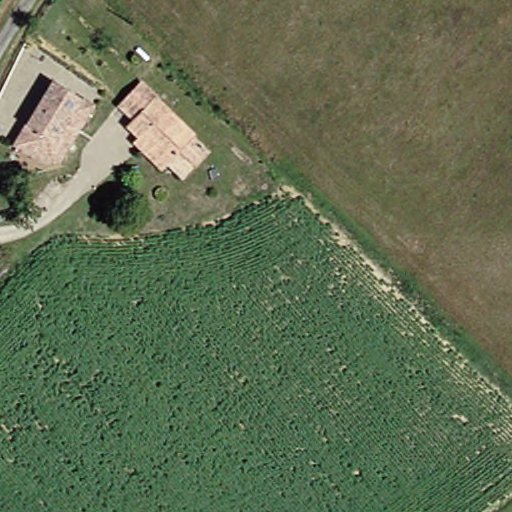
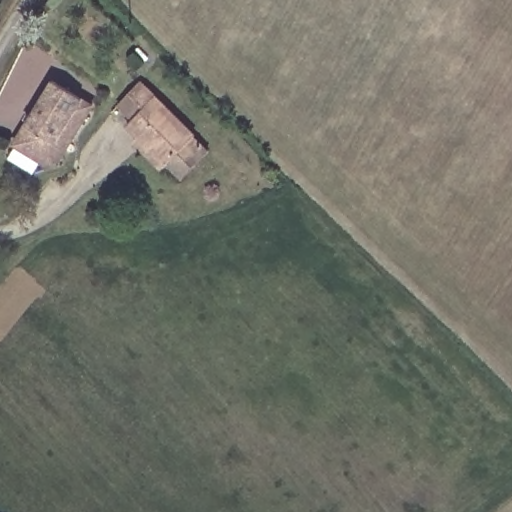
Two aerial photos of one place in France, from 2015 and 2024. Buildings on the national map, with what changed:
unchanged [(50,81),(90,106),(57,159),(40,164),(12,146),(50,81)]
unchanged [(141,139),(129,127),(132,123),(116,106),(140,85),(195,137),(170,165),(161,175),(134,148),(141,139)]

